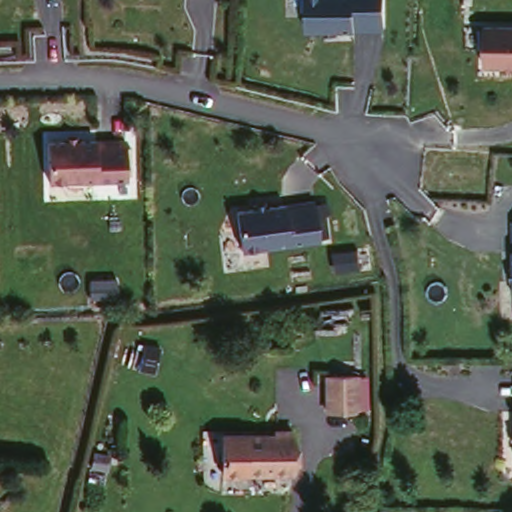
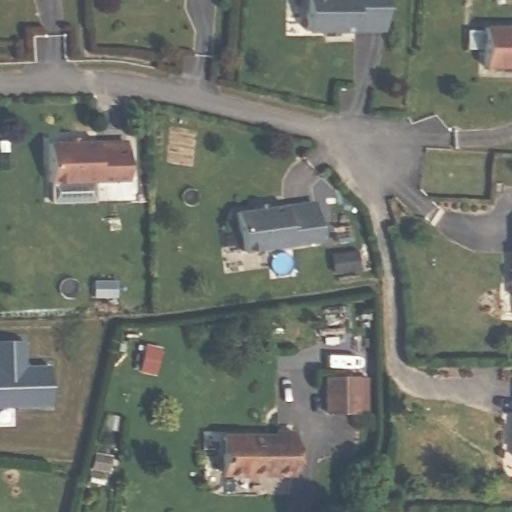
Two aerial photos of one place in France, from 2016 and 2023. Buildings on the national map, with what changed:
unchanged [(308,0),(387,0),(388,28),(335,30),(335,33),(307,33),(308,0)]
unchanged [(482,26),(512,26),(512,67),(480,66),(482,26)]
unchanged [(49,142),(127,141),(126,180),(51,182),(49,142)]
unchanged [(237,212),(318,200),(322,239),(243,250),(237,212)]
unchanged [(511,220),(512,220),(512,295),(511,220)]
new [(23,368),(48,367),(49,407),(0,409),(0,344),(22,343),(23,368)]
unchanged [(323,374),(368,374),(367,410),(322,407),(323,374)]
unchanged [(281,435),(281,429),(294,429),(291,475),(225,471),(226,432),(281,435)]

